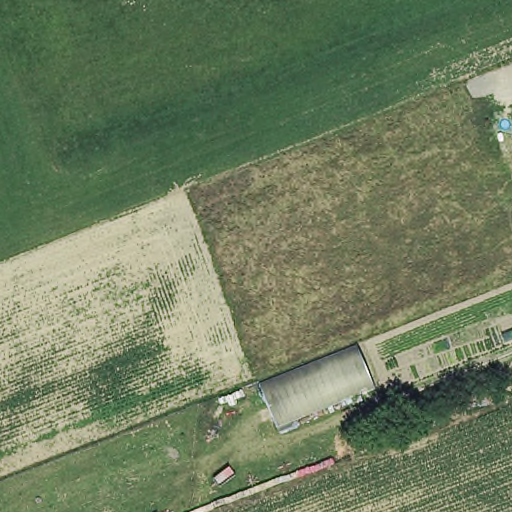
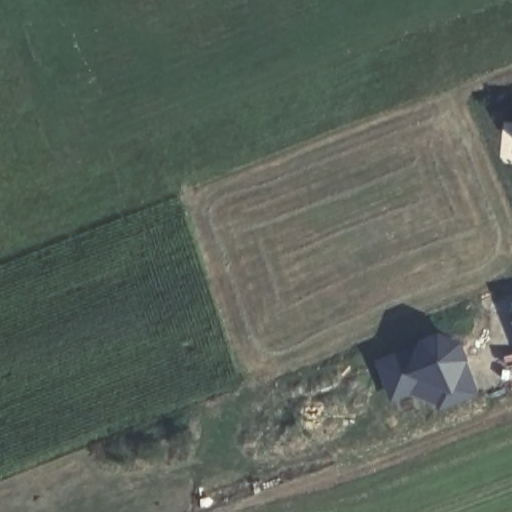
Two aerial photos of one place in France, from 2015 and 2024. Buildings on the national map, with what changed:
new [(512,304),(512,315),(508,305),(512,304)]
new [(460,341),(477,394),(437,411),(409,394),(387,403),(372,361),(437,333),(460,341)]
demolished [(364,346),(380,385),(282,423),(267,383),(364,346)]

